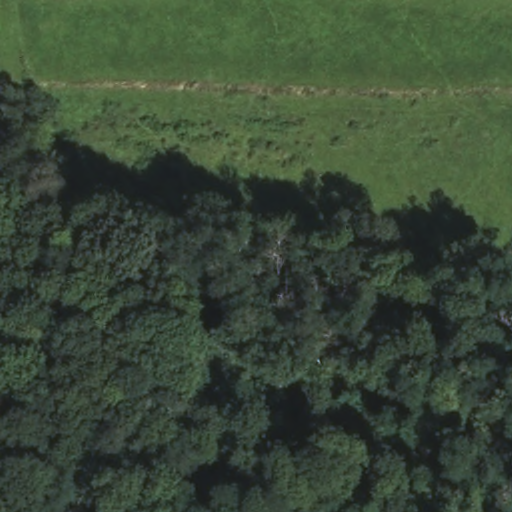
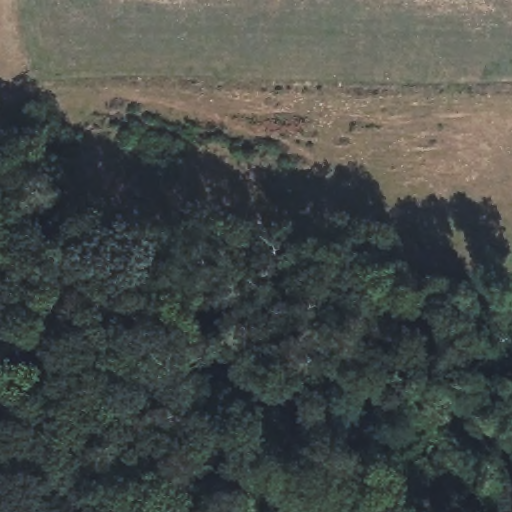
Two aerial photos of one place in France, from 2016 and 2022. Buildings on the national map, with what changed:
[]

